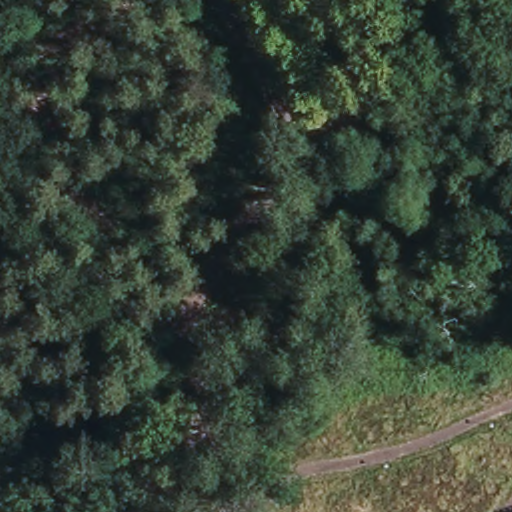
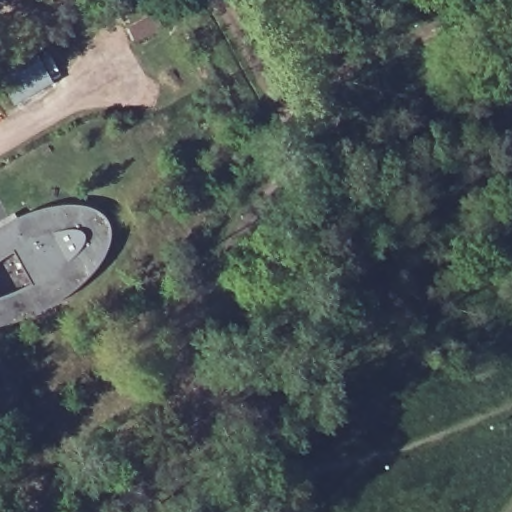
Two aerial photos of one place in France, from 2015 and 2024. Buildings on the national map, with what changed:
new [(54,82),(38,91),(16,103),(0,75),(0,74),(21,62),(38,53),(54,82)]
new [(42,209),(65,206),(85,206),(104,214),(111,227),(109,242),(100,262),(87,278),(69,293),(44,308),(25,317),(7,324),(0,326),(0,298),(30,284),(13,250),(0,260),(0,227),(17,217),(42,209)]

